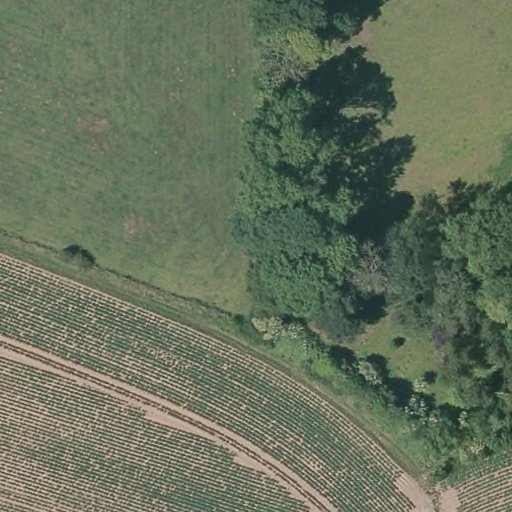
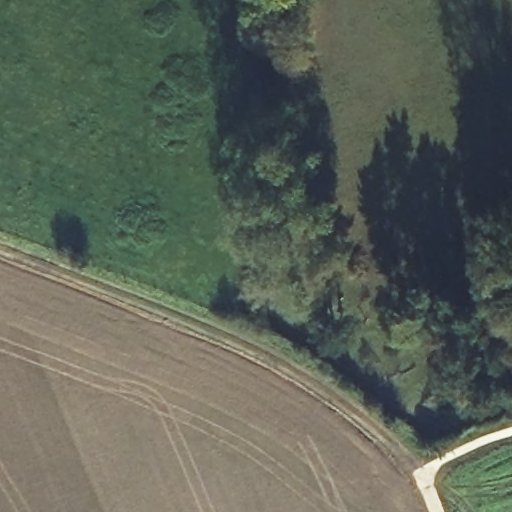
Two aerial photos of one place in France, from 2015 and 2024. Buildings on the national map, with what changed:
[]

